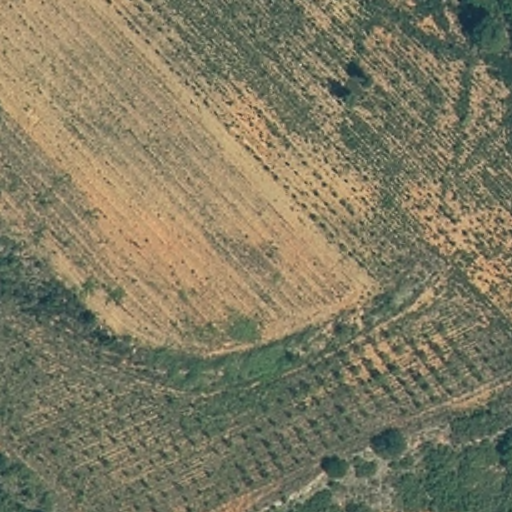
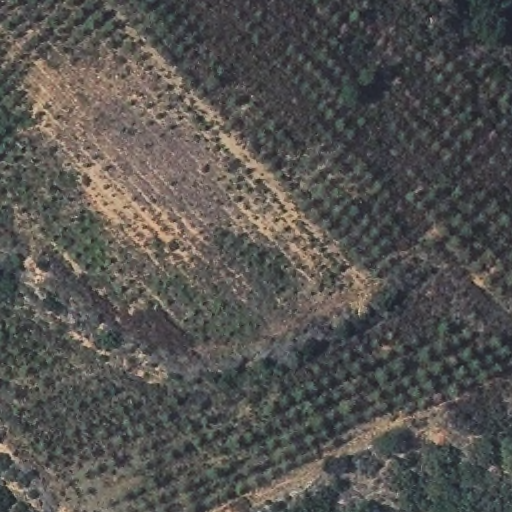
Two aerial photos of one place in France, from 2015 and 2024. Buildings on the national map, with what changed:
[]

